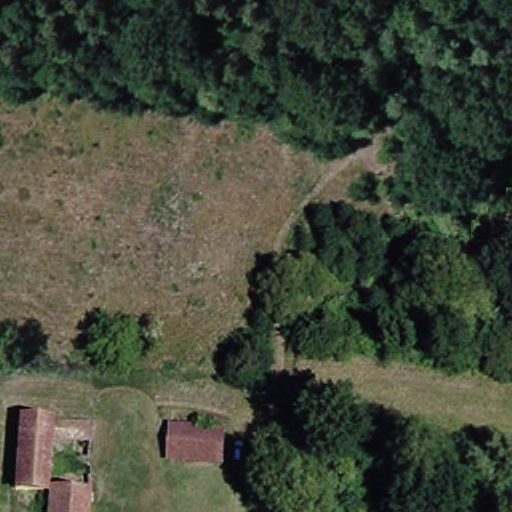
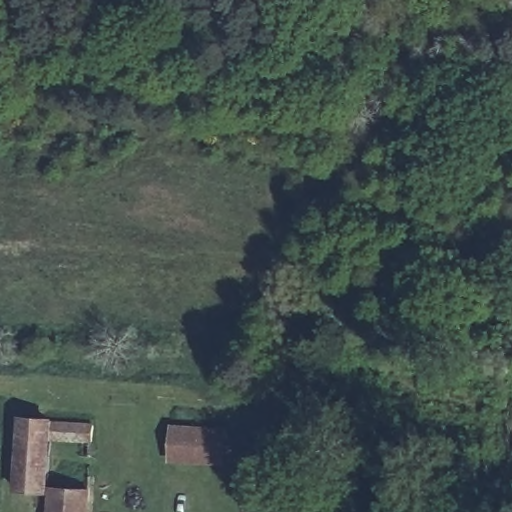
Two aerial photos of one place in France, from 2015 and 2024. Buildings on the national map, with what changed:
unchanged [(41,474),(15,468),(20,417),(44,421),(41,474)]
unchanged [(172,425),(230,428),(229,464),(171,461),(172,425)]
unchanged [(52,512),(58,483),(86,486),(78,512),(52,512)]

